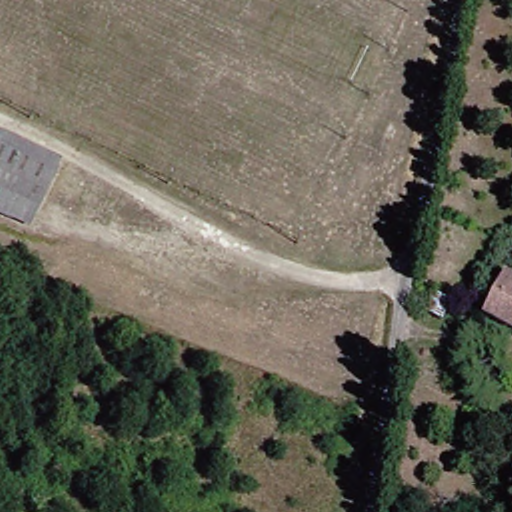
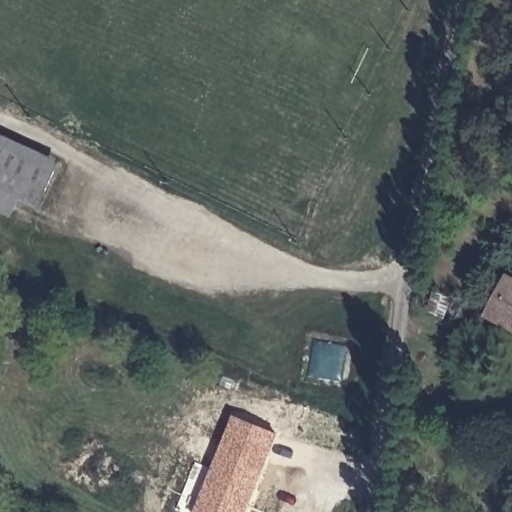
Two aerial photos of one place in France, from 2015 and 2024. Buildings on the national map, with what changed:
unchanged [(0,185),(0,143),(6,131),(61,161),(39,206),(32,220),(0,204),(8,190),(0,185)]
unchanged [(512,275),(512,325),(489,312),(511,275),(512,275)]
new [(279,434),(247,512),(195,512),(235,416),(279,434)]

